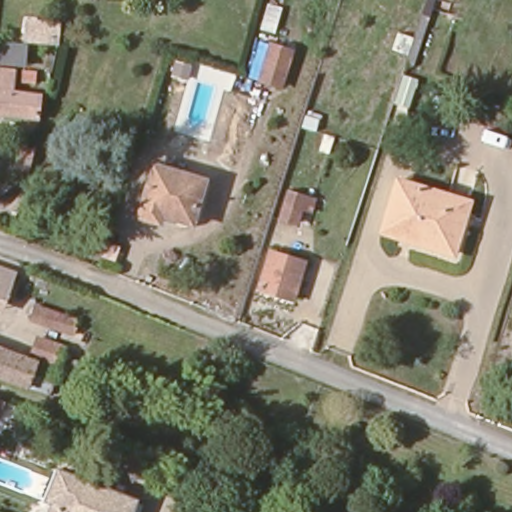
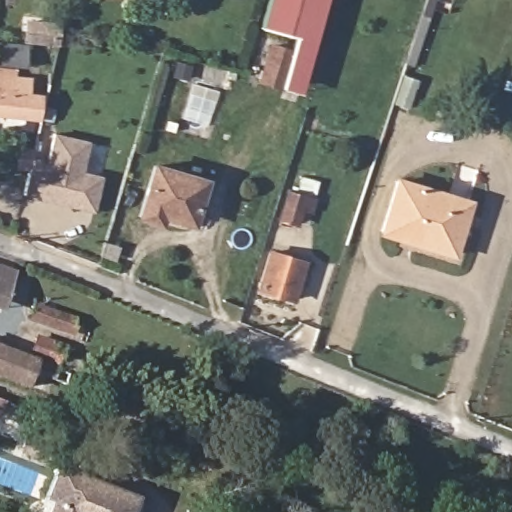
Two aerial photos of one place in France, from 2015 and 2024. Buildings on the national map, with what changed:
new [(294,38),(260,28),(268,0),(327,0),(301,93),(278,87),(279,84),(261,79),(272,44),(291,50),(294,38)]
demolished [(278,36),(260,31),(269,3),(286,9),(278,36)]
demolished [(291,50),(279,84),(261,79),(272,44),(291,50)]
demolished [(57,65),(55,75),(45,74),(47,64),(57,65)]
unchanged [(22,92),(48,94),(46,115),(0,110),(0,65),(24,68),(22,92)]
new [(49,164),(54,135),(89,144),(82,178),(101,181),(94,214),(27,198),(35,161),(49,164)]
unchanged [(212,179),(209,191),(205,203),(199,208),(195,212),(190,214),(182,216),(179,223),(147,212),(163,162),(212,179)]
unchanged [(398,184),(449,199),(468,205),(453,256),(381,235),(398,184)]
unchanged [(324,198),(321,208),(310,204),(301,231),(274,222),(286,186),(324,198)]
unchanged [(303,261),(292,296),(259,285),(271,251),(303,261)]
unchanged [(3,309),(0,308),(0,269),(15,274),(3,309)]
unchanged [(77,288),(72,304),(46,295),(51,279),(77,288)]
unchanged [(28,321),(36,302),(86,320),(79,340),(28,321)]
unchanged [(41,335),(58,342),(51,362),(33,355),(41,335)]
unchanged [(39,388),(0,374),(0,348),(48,365),(39,388)]
unchanged [(81,376),(77,387),(70,384),(74,373),(81,376)]
unchanged [(54,502),(63,475),(140,505),(137,512),(60,512),(62,506),(54,502)]

